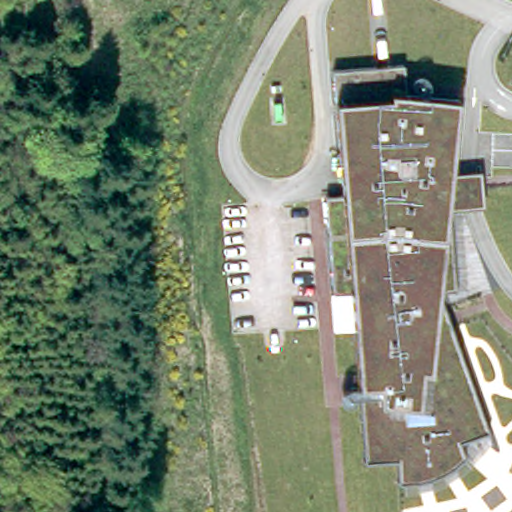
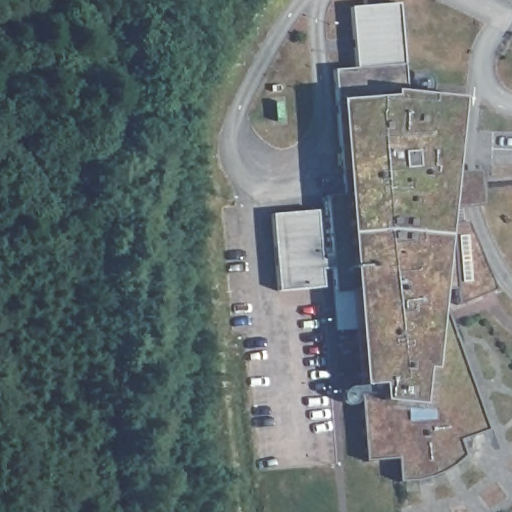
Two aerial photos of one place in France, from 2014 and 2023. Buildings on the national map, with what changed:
new [(399,3),(404,65),(354,68),(351,6),(399,3)]
unchanged [(397,457),(365,460),(359,383),(352,288),(334,291),(327,195),(343,191),(336,100),(334,70),(404,65),(407,92),(458,98),(451,174),(480,170),(483,205),(447,207),(445,218),(449,217),(454,288),(438,288),(487,429),(459,440),(463,456),(447,468),(432,476),(413,480),(399,480),(397,457)]
new [(314,211),(319,286),(276,290),(271,214),(314,211)]
new [(495,288),(457,304),(454,288),(450,225),(466,222),(495,288)]

